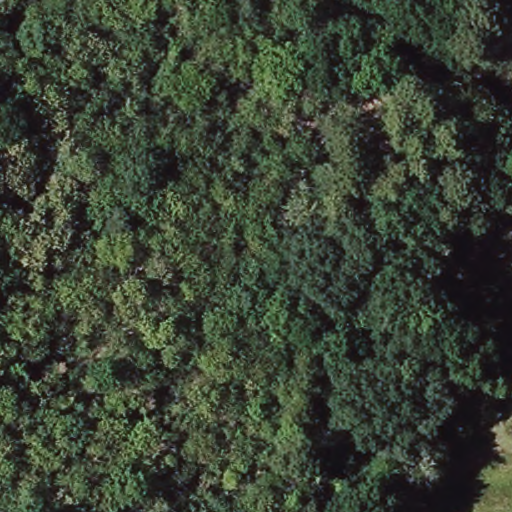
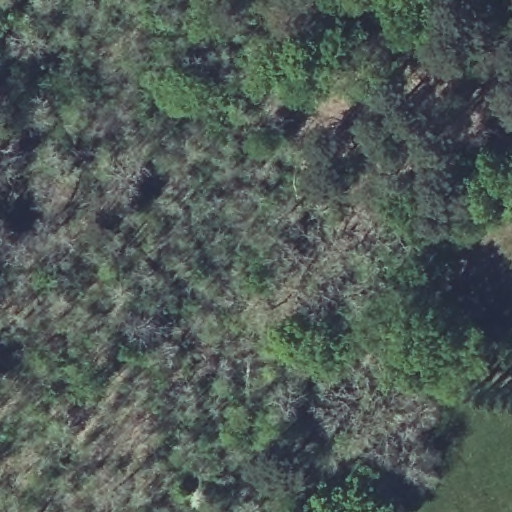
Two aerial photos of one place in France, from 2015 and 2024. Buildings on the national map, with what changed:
[]

